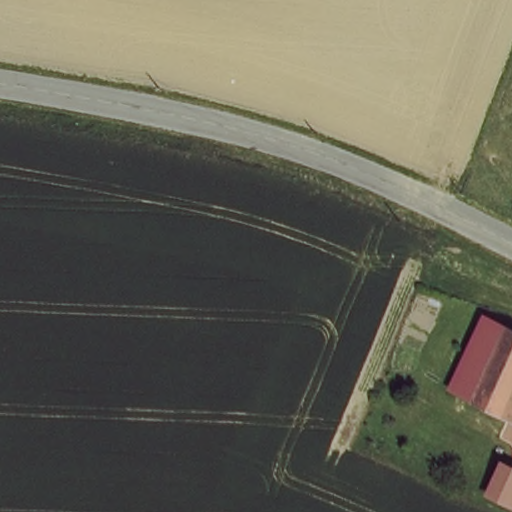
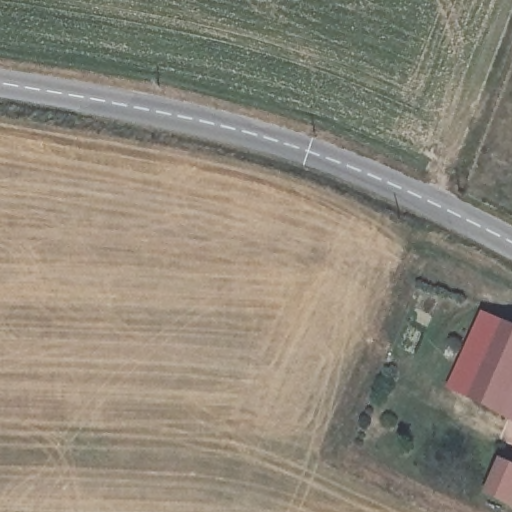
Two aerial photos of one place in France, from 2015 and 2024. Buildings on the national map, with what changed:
unchanged [(512,331),(512,433),(445,398),(483,317),(512,331)]
unchanged [(490,503),(485,502),(502,462),(512,466),(512,510),(505,508),(490,503)]

